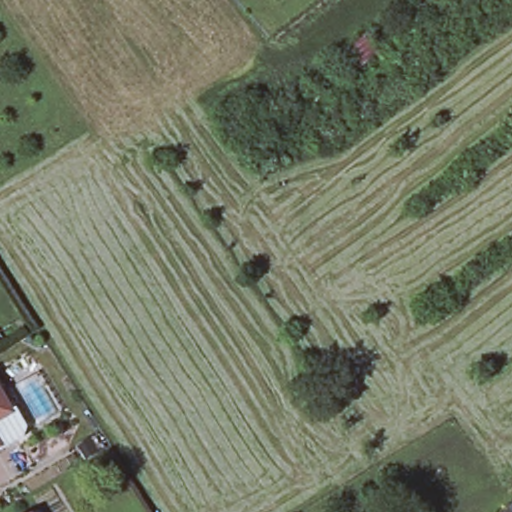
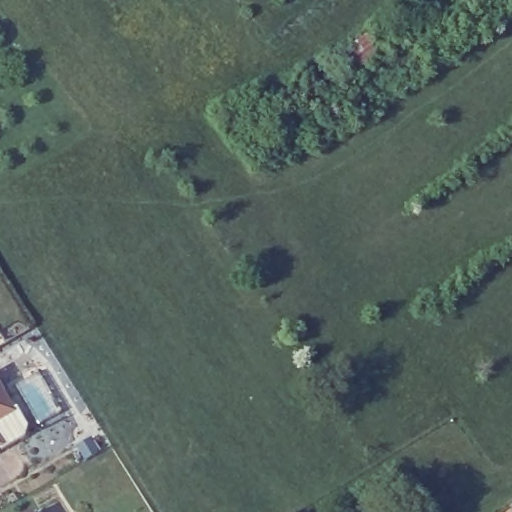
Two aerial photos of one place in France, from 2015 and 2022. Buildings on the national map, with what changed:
unchanged [(23,424),(20,435),(0,447),(0,399),(6,410),(12,406),(23,424)]
unchanged [(512,512),(508,512),(507,510),(512,507),(512,512)]

